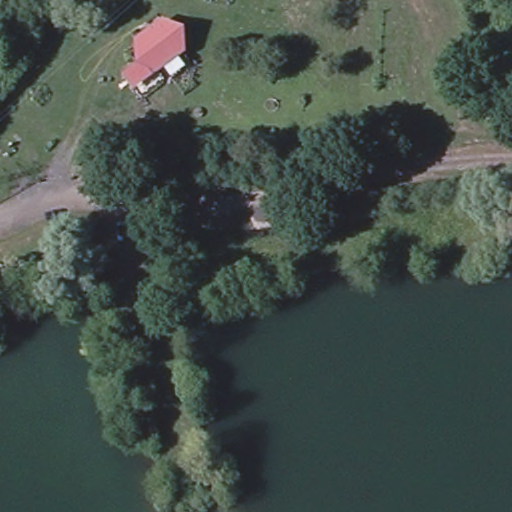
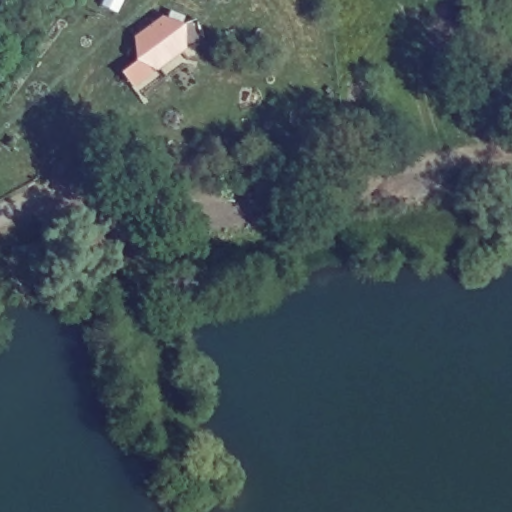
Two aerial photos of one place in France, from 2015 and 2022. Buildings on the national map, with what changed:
unchanged [(183,54),(150,77),(133,62),(134,37),(160,18),(183,30),(183,54)]

